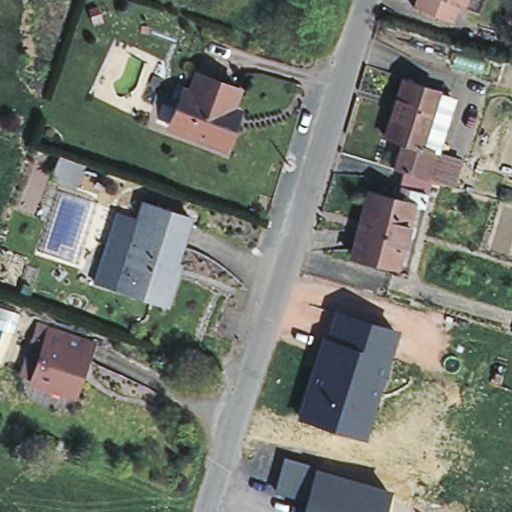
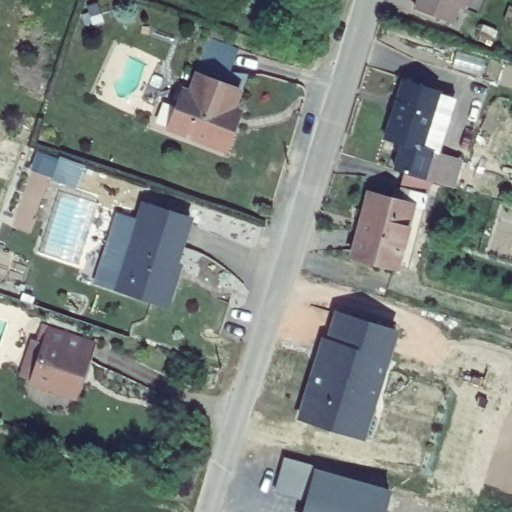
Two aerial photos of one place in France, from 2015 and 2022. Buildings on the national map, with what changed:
unchanged [(417,6),(420,0),(466,0),(463,7),(460,5),(453,20),(417,6)]
unchanged [(175,111),(183,91),(190,93),(196,76),(238,90),(231,111),(240,114),(235,127),(226,150),(182,135),(168,130),(175,111)]
unchanged [(383,137),(390,113),(392,114),(402,84),(436,95),(420,148),(436,154),(456,160),(448,187),(391,170),(399,141),(383,137)]
unchanged [(453,99),(436,154),(420,148),(436,95),(453,99)]
unchanged [(75,166),(69,185),(50,179),(56,160),(75,166)]
unchanged [(404,273),(393,270),(350,257),(368,195),(411,208),(422,211),(404,273)]
unchanged [(107,243),(127,250),(143,199),(191,214),(171,274),(176,275),(168,301),(139,290),(137,296),(115,288),(94,281),(107,243)]
unchanged [(393,332),(361,437),(300,417),(316,367),(324,344),(328,345),(336,315),(393,332)]
unchanged [(37,344),(42,328),(87,343),(71,396),(32,382),(44,347),(37,344)]
unchanged [(390,490),(385,512),(305,512),(316,471),(390,490)]

